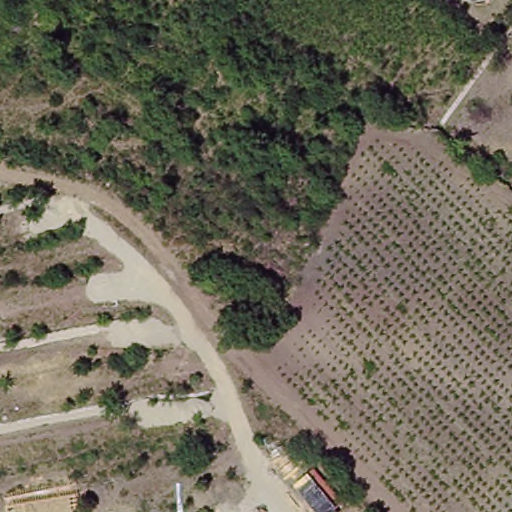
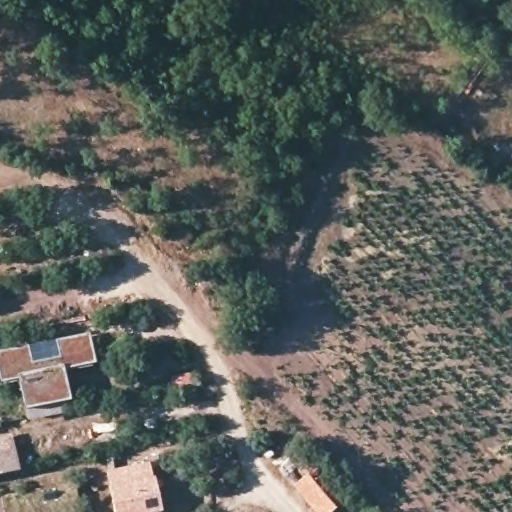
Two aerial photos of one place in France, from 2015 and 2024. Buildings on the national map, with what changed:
new [(55,357),(52,347),(51,342),(85,335),(87,340),(92,363),(59,370),(65,401),(19,411),(12,380),(0,382),(0,353),(23,347),(24,353),(27,363),(55,357)]
new [(0,474),(0,437),(10,435),(17,470),(0,474)]
new [(117,512),(113,492),(110,477),(152,468),(155,483),(161,511),(156,512),(117,512)]
unchanged [(307,473),(314,468),(343,502),(334,510),(336,512),(316,512),(293,486),(307,473)]
unchanged [(77,492),(79,508),(72,510),(72,512),(7,512),(6,507),(77,492)]

